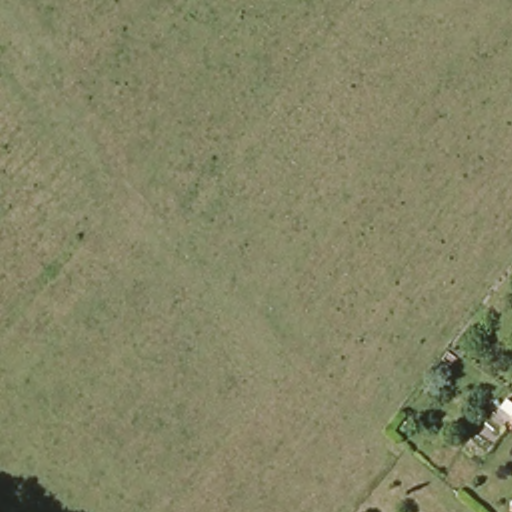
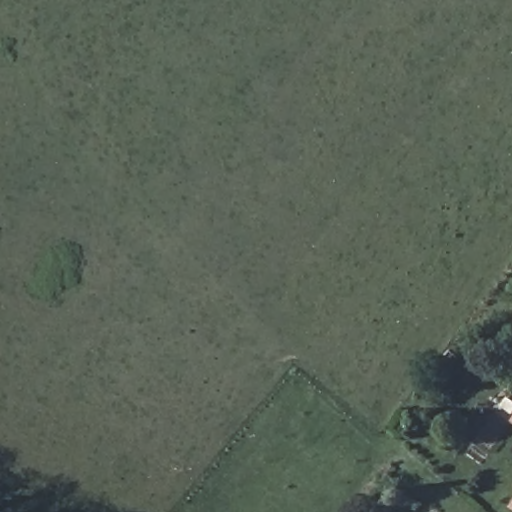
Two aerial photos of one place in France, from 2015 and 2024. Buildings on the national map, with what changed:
[]

